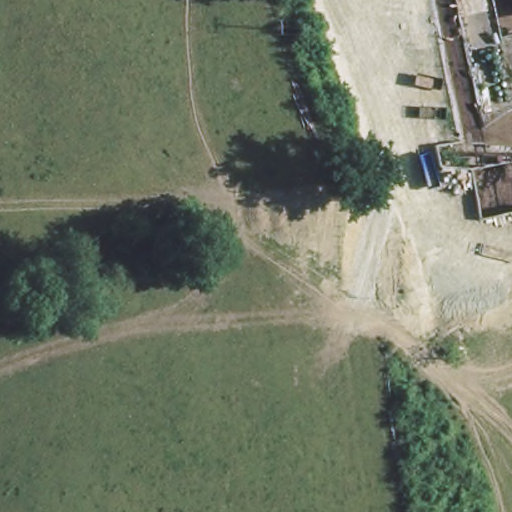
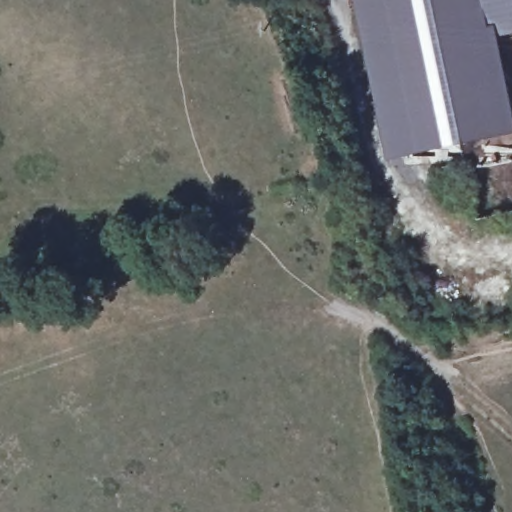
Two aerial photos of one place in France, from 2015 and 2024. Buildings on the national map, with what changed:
demolished [(409,34),(400,20),(359,28),(352,0),(512,0),(512,10),(409,34)]
new [(497,39),(512,110),(512,138),(385,161),(354,0),(512,0),(512,36),(497,39)]

